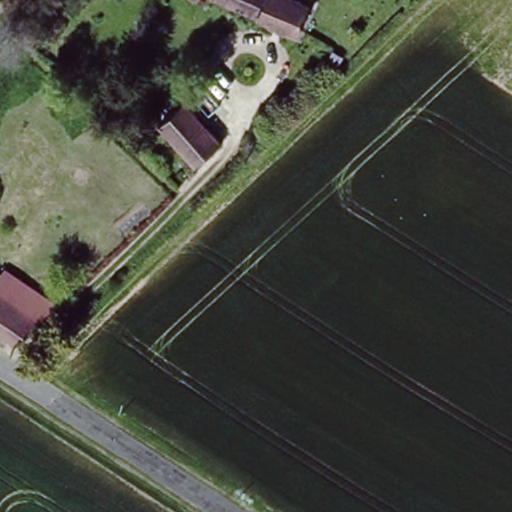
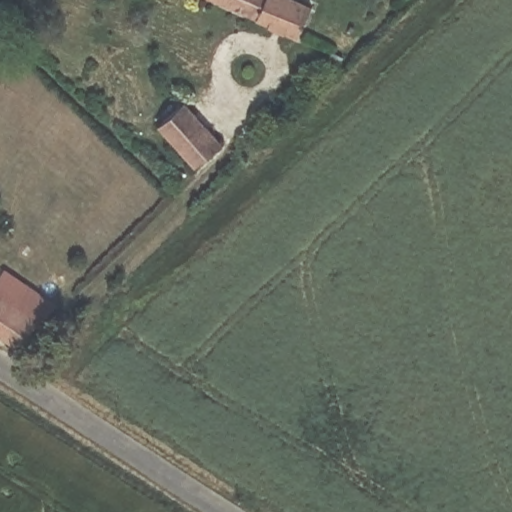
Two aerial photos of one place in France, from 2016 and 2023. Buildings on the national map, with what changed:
unchanged [(236,0),(311,0),(300,26),(236,0)]
unchanged [(187,99),(225,139),(200,159),(162,120),(187,99)]
unchanged [(10,270),(62,306),(21,344),(0,330),(0,284),(10,270)]

